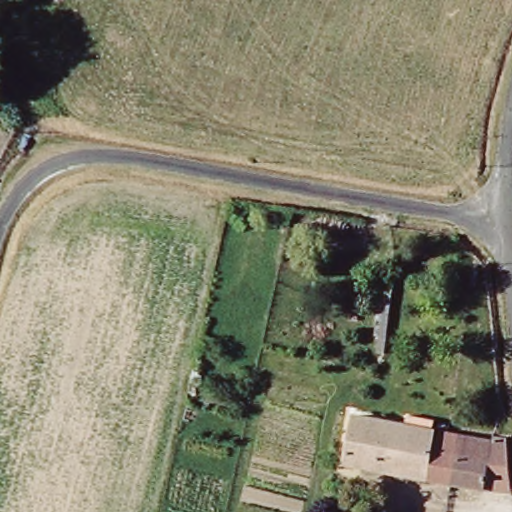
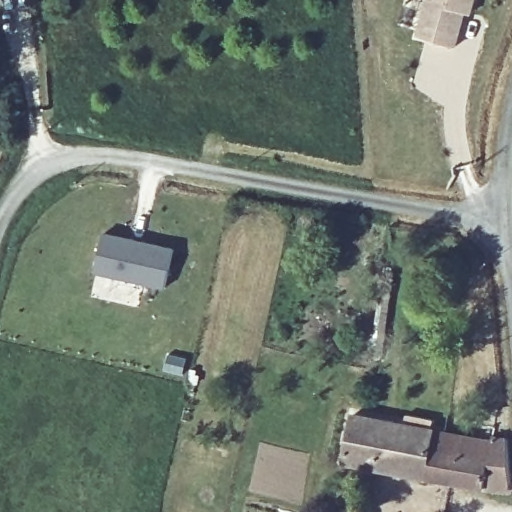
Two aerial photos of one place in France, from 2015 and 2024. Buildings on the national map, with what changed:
new [(434,4),(435,0),(473,0),(469,15),(463,14),(454,49),(416,39),(426,1),(434,4)]
new [(140,242),(147,243),(179,250),(170,289),(100,273),(109,234),(140,242)]
unchanged [(443,444),(455,447),(450,479),(347,462),(355,416),(446,433),(443,444)]
unchanged [(486,484),(450,479),(455,447),(443,444),(446,433),(490,442),(486,484)]
unchanged [(510,467),(512,480),(512,488),(486,484),(490,442),(491,437),(508,438),(510,467)]

